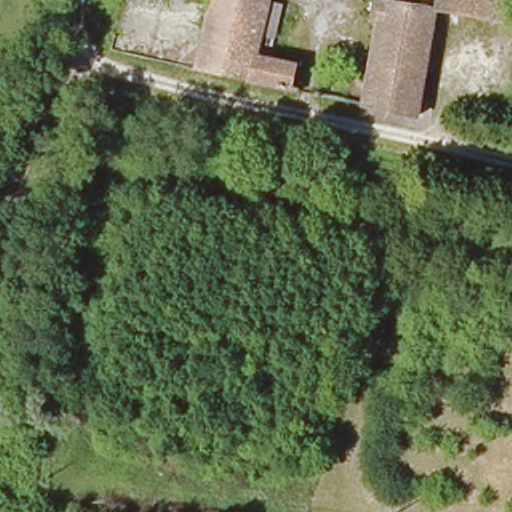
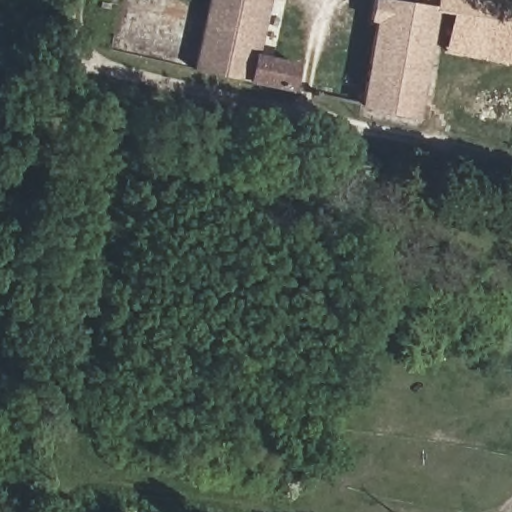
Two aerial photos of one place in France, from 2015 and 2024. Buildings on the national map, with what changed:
unchanged [(177,26),(194,30),(202,0),(274,0),(262,57),(291,65),(283,92),(168,65),(172,48),(177,26)]
unchanged [(380,22),(368,19),(371,0),(391,0),(418,6),(419,0),(436,0),(434,9),(428,40),(413,118),(360,105),(380,22)]
new [(512,0),(512,65),(442,52),(450,15),(434,12),(436,0),(512,0)]

